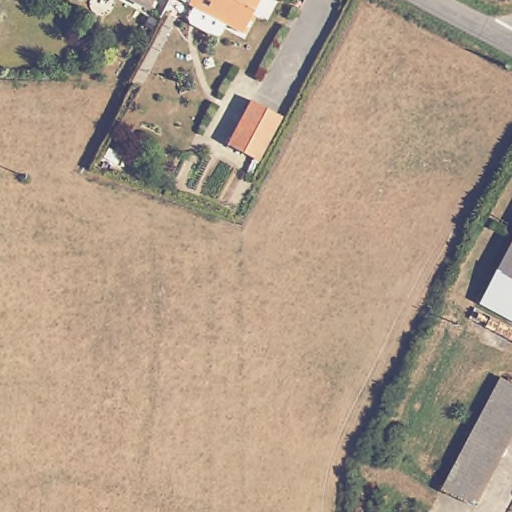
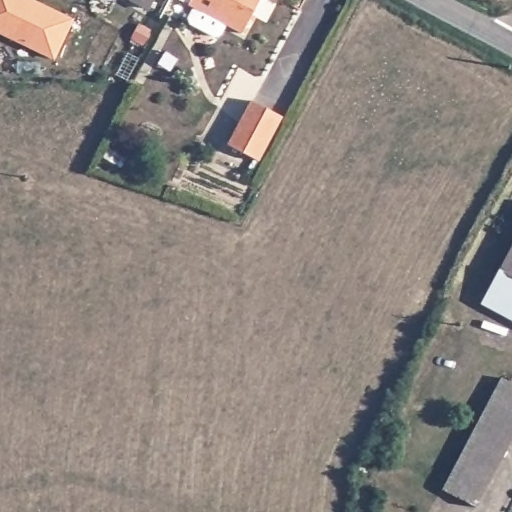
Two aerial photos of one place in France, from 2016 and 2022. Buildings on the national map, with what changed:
new [(74,19),(53,60),(0,35),(0,0),(37,0),(74,19)]
unchanged [(159,12),(136,0),(165,0),(159,12)]
unchanged [(254,31),(238,22),(232,32),(227,34),(202,21),(200,16),(206,5),(200,2),(202,0),(270,0),(254,31)]
unchanged [(278,120),(254,163),(222,145),(246,102),(278,120)]
unchanged [(494,276),(512,241),(512,313),(482,297),(494,276)]
unchanged [(469,503),(439,485),(501,375),(512,380),(512,433),(471,504),(469,503)]

